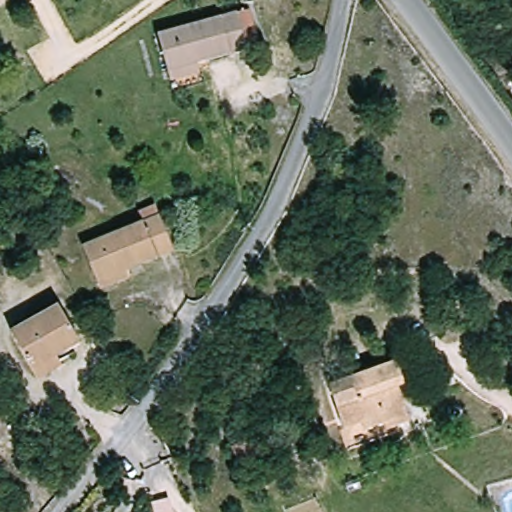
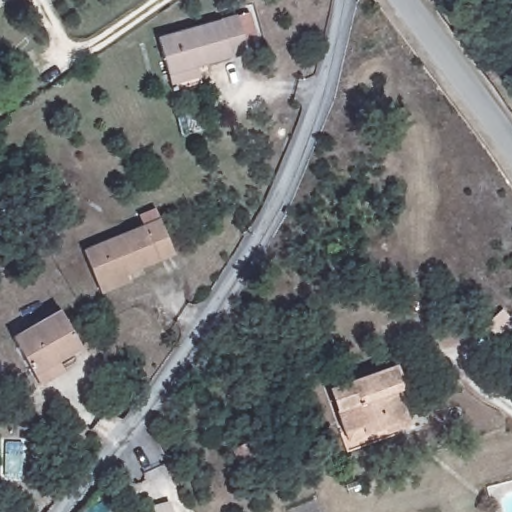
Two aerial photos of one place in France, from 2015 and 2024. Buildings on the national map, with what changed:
unchanged [(169,84),(167,74),(157,37),(248,12),(259,49),(196,66),(199,76),(169,84)]
unchanged [(100,292),(97,283),(83,250),(159,219),(167,238),(178,234),(184,249),(125,272),(129,281),(100,292)]
unchanged [(65,308),(87,347),(62,361),(67,370),(42,384),(15,337),(65,308)]
unchanged [(344,428),(329,389),(394,366),(408,403),(401,406),(408,423),(387,432),(384,426),(365,432),(347,438),(344,428)]
unchanged [(256,437),(266,456),(241,469),(231,450),(256,437)]

